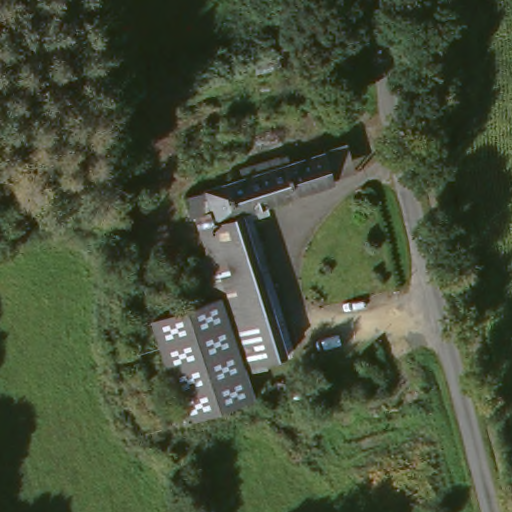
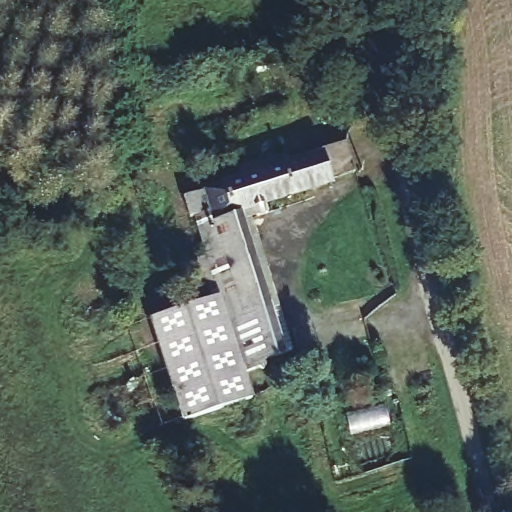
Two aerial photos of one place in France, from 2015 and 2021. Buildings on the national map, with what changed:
unchanged [(148,316),(203,301),(195,261),(203,256),(193,226),(184,225),(180,195),(237,182),(236,171),(283,157),(287,162),(344,142),(354,170),(334,179),(335,184),(268,207),(269,216),(255,220),(294,348),(245,368),(257,395),(183,423),(148,316)]

